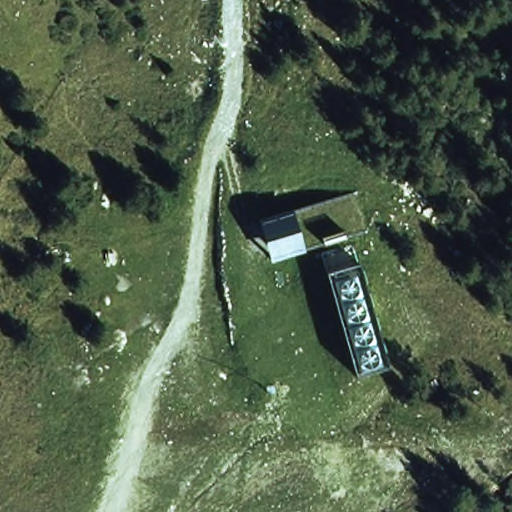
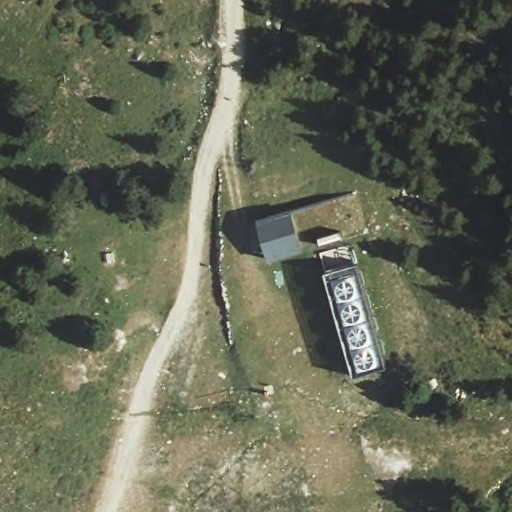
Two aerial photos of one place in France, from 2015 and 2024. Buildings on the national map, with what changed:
unchanged [(355,236),(265,262),(255,218),(343,192),(355,236)]
unchanged [(378,360),(345,367),(323,269),(354,261),(378,360)]

